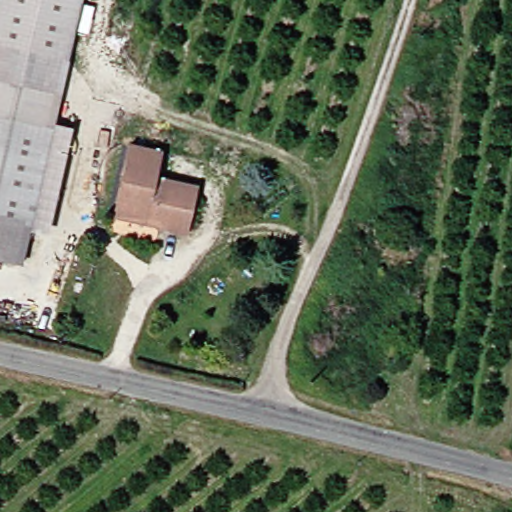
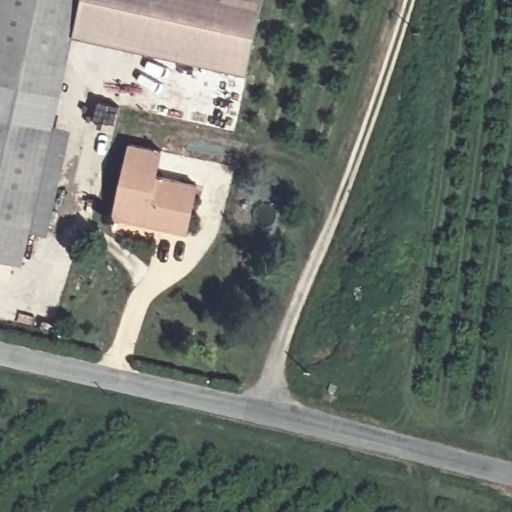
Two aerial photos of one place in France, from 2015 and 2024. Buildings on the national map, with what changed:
unchanged [(65,87),(0,74),(0,0),(82,0),(76,35),(65,87)]
new [(260,0),(246,71),(76,35),(82,0),(260,0)]
unchanged [(25,264),(0,257),(0,74),(65,87),(25,264)]
unchanged [(140,225),(108,217),(125,144),(156,151),(151,177),(192,186),(182,227),(181,234),(140,225)]

